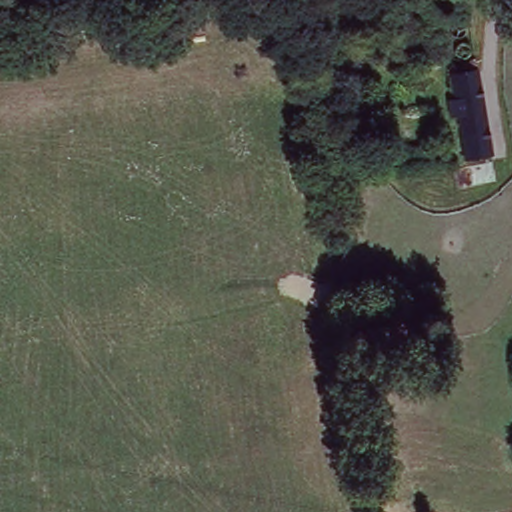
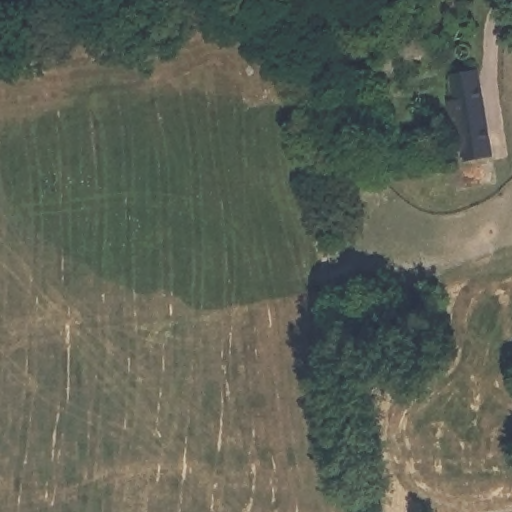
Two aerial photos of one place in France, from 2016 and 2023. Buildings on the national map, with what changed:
unchanged [(467,21),(467,22),(467,23),(466,23),(466,24),(466,25),(465,25),(465,26),(464,26),(464,27),(463,27),(462,28),(461,28),(460,28),(460,29),(459,29),(458,29),(457,29),(456,28),(454,27),(453,27),(452,26),(451,26),(451,25),(451,24),(450,24),(450,23),(450,22),(449,22),(449,21),(449,20),(449,19),(449,18),(450,17),(450,16),(450,15),(451,15),(452,13),(453,12),(454,12),(454,11),(455,11),(456,11),(457,11),(458,11),(459,11),(460,11),(461,11),(462,11),(462,12),(463,12),(464,12),(464,13),(465,13),(465,14),(466,14),(466,15),(467,17),(467,19),(467,20),(467,21)]
unchanged [(472,43),(471,43),(471,44),(471,45),(471,46),(470,46),(470,47),(469,48),(468,49),(467,49),(467,50),(466,50),(465,50),(465,51),(464,51),(463,51),(462,51),(461,51),(460,50),(458,50),(457,49),(456,49),(456,48),(455,48),(455,47),(455,46),(454,46),(454,45),(454,44),(453,44),(453,43),(453,41),(453,40),(453,39),(454,39),(454,38),(454,37),(455,37),(455,36),(456,35),(458,34),(459,34),(459,33),(460,33),(461,33),(462,33),(462,32),(463,32),(464,32),(464,33),(465,33),(466,33),(467,33),(467,34),(468,34),(468,35),(469,35),(469,36),(470,36),(470,37),(471,37),(471,39),(472,41),(472,42),(472,43)]
unchanged [(485,94),(496,144),(470,150),(464,111),(456,113),(451,96),(460,92),(451,65),(478,60),(485,94)]

